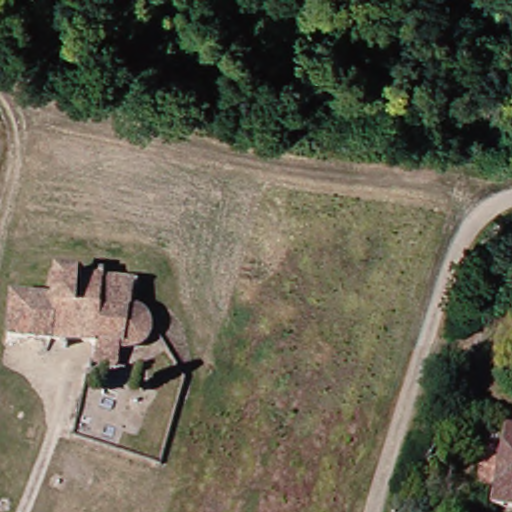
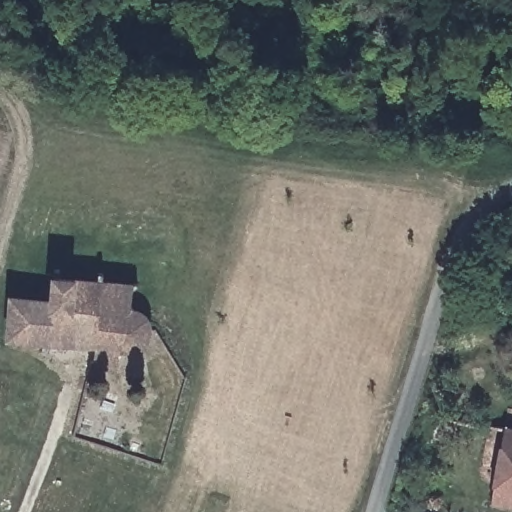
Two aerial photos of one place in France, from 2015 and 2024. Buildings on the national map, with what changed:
unchanged [(92,371),(80,370),(81,350),(0,344),(0,298),(42,300),(42,277),(93,281),(128,286),(130,309),(140,312),(143,318),(147,336),(141,345),(137,350),(115,350),(111,372),(92,371)]
unchanged [(497,432),(512,433),(512,503),(490,501),(497,432)]

